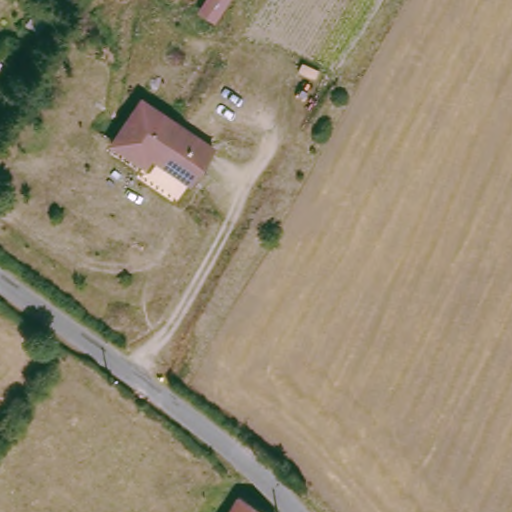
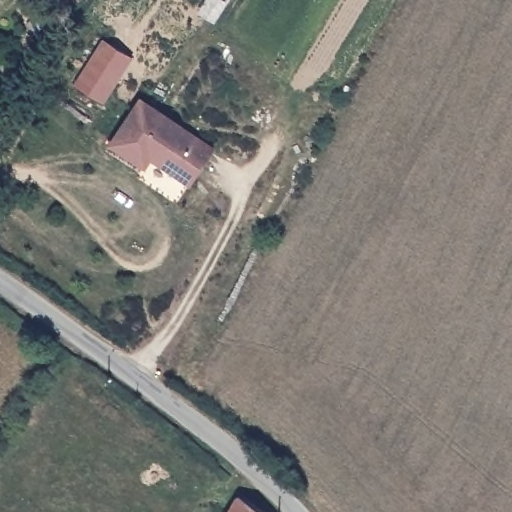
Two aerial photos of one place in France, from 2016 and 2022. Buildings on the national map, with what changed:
new [(75,84),(104,39),(132,58),(105,102),(75,84)]
unchanged [(186,176),(148,151),(144,156),(111,136),(138,94),(209,140),(186,176)]
unchanged [(239,495),(265,512),(229,512),(239,495)]

